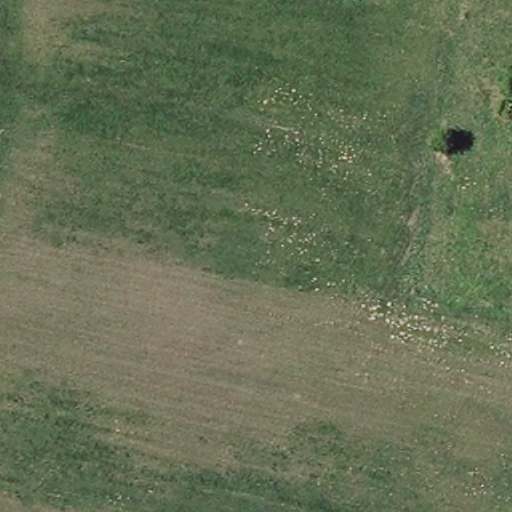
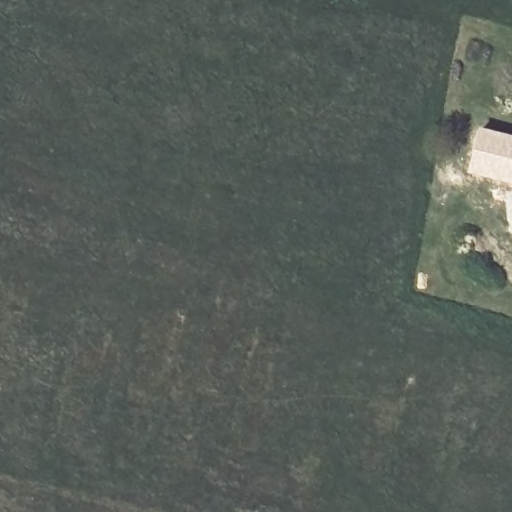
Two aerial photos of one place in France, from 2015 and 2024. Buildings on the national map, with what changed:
new [(512,134),(512,185),(466,172),(478,126),(512,134)]

